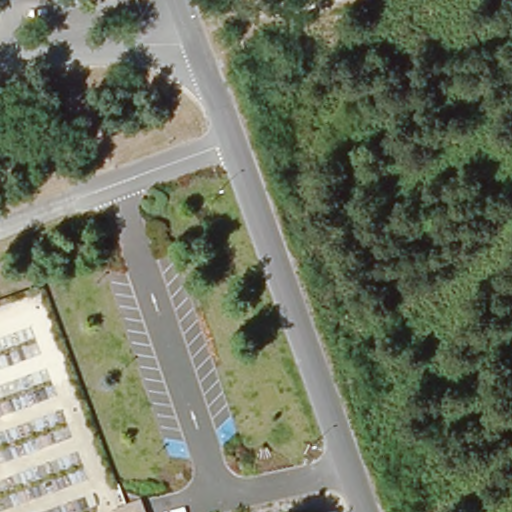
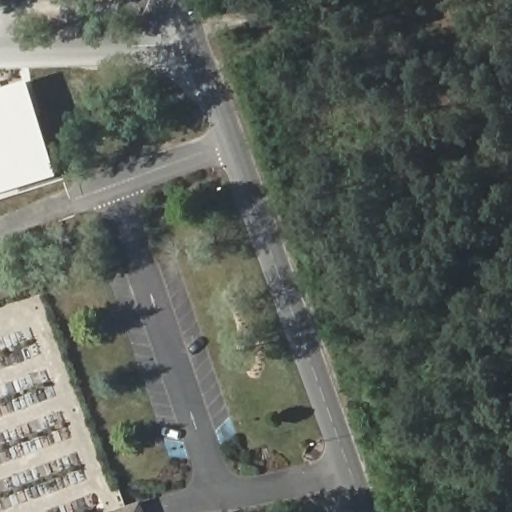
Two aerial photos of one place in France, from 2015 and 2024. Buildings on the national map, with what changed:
new [(0,193),(0,88),(28,79),(57,175),(0,193)]
unchanged [(145,512),(112,512),(128,506),(141,501),(145,512)]

